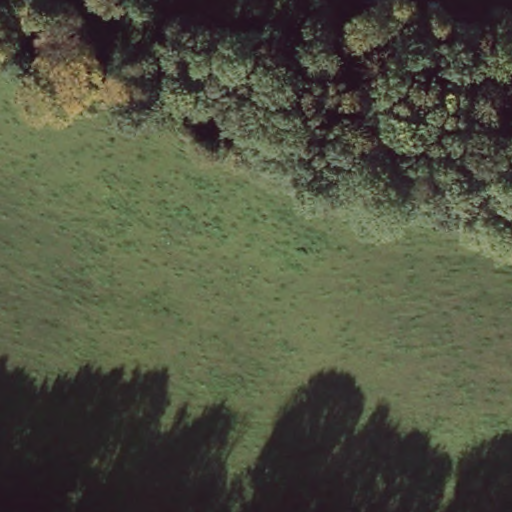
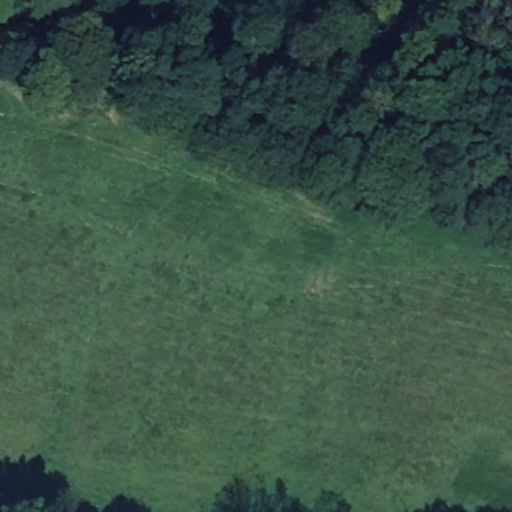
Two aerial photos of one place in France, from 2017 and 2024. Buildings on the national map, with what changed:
[]

